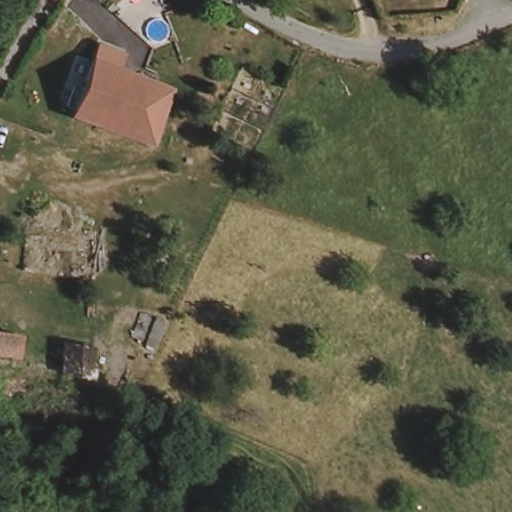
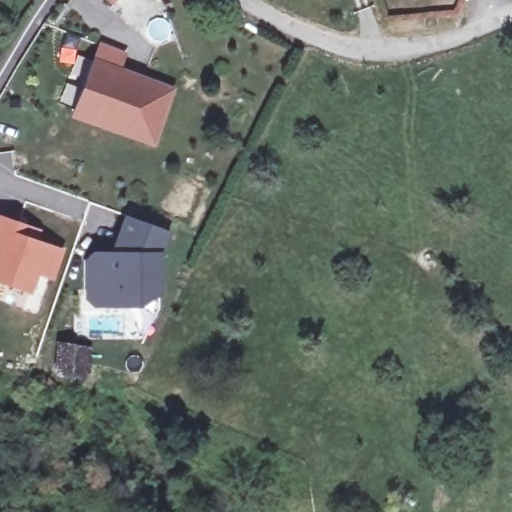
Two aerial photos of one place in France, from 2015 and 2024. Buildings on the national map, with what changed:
unchanged [(80,105),(62,98),(80,50),(98,56),(80,105)]
unchanged [(161,131),(157,142),(140,136),(142,130),(80,105),(98,56),(163,81),(177,87),(161,131)]
unchanged [(85,150),(80,157),(61,149),(65,141),(85,150)]
new [(21,221),(17,231),(63,247),(55,271),(40,266),(33,285),(0,274),(0,214),(21,221)]
new [(163,255),(162,296),(141,307),(94,307),(86,299),(86,260),(92,252),(112,251),(125,215),(170,230),(163,255)]
unchanged [(60,360),(63,330),(93,333),(90,363),(60,360)]

